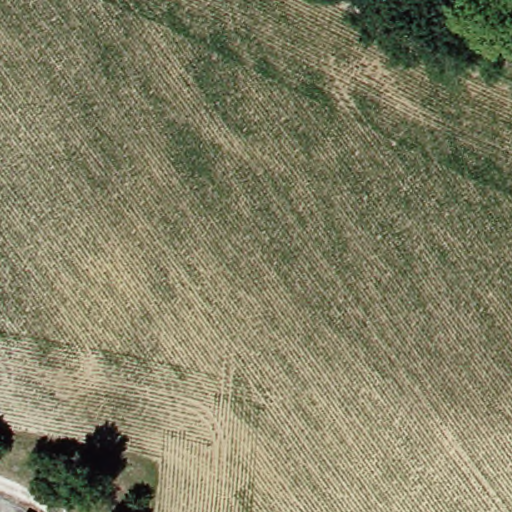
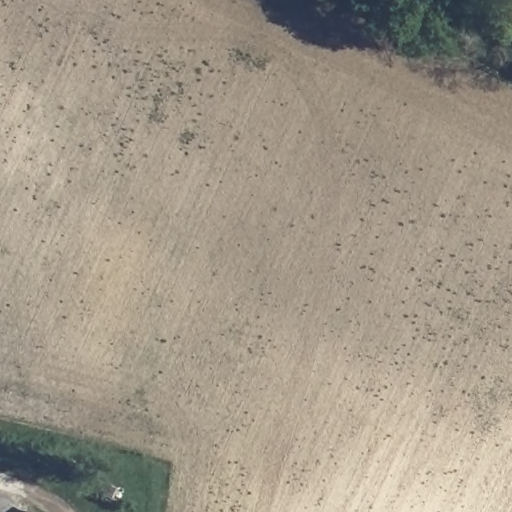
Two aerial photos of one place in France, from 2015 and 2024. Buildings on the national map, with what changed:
unchanged [(33,506),(43,512),(29,512),(33,506)]

